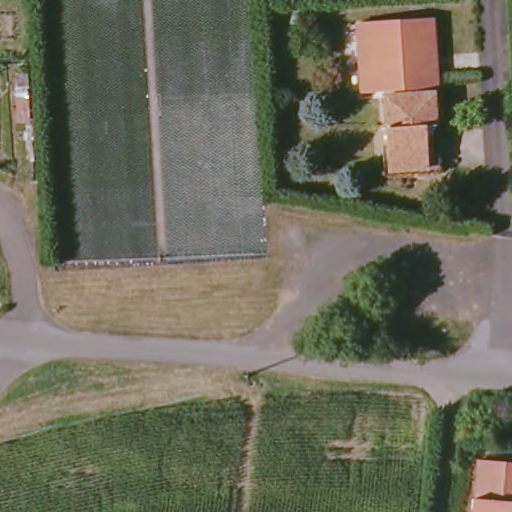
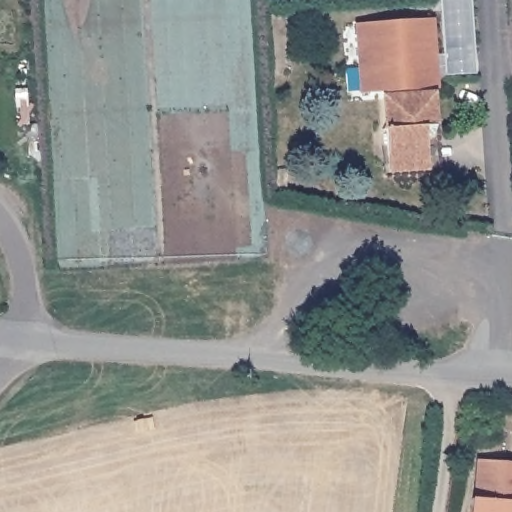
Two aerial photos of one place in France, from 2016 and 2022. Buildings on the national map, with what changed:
unchanged [(387,170),(382,97),(408,95),(407,90),(361,93),(357,24),(432,19),(437,88),(423,89),(424,94),(434,93),(437,127),(440,167),(427,167),(387,170)]
unchanged [(465,498),(476,498),(476,460),(512,462),(512,512),(465,512),(465,498)]

